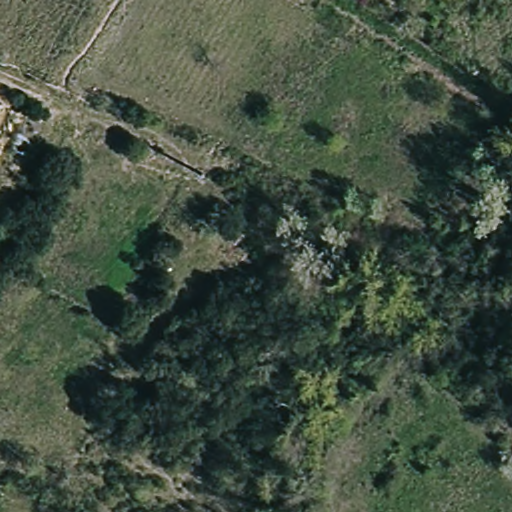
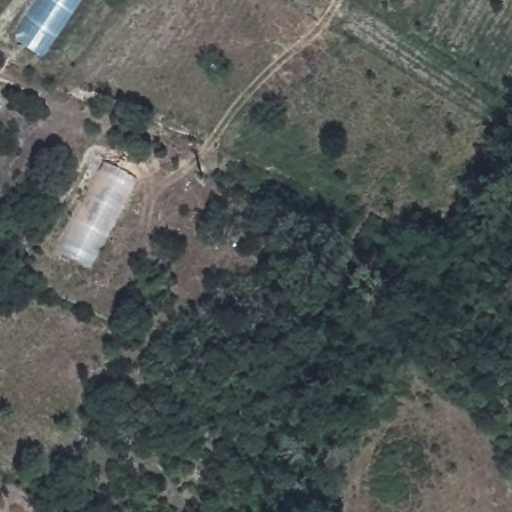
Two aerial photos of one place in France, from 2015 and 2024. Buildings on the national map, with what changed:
new [(16,36),(40,0),(81,0),(42,56),(16,36)]
new [(137,179),(89,269),(60,252),(107,163),(137,179)]

